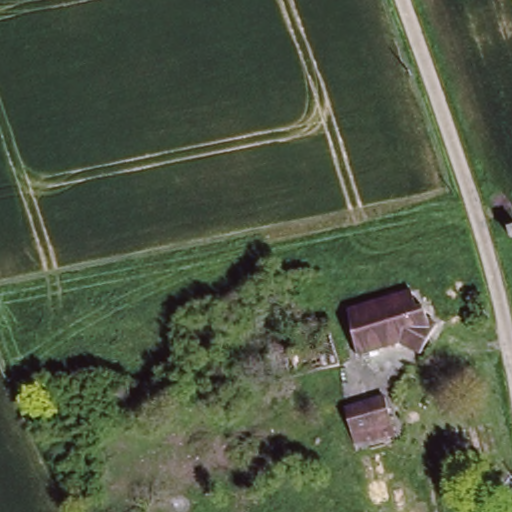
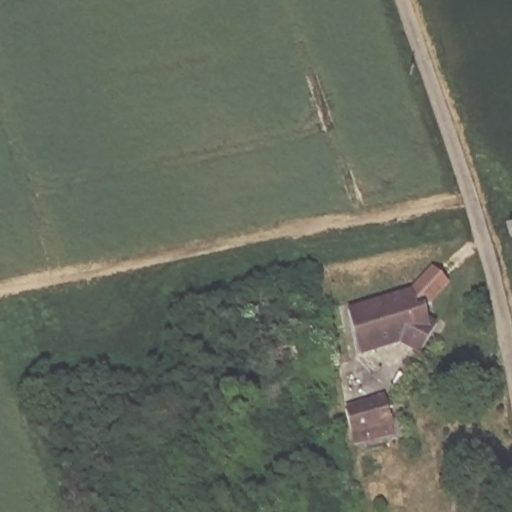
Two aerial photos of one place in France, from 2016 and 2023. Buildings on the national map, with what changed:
unchanged [(284,284),(287,300),(275,303),(272,286),(284,284)]
unchanged [(384,301),(388,312),(421,303),(428,327),(356,347),(346,310),(384,301)]
unchanged [(328,321),(338,363),(271,378),(263,337),(328,321)]
unchanged [(396,397),(398,411),(387,414),(388,422),(348,433),(343,408),(396,397)]

